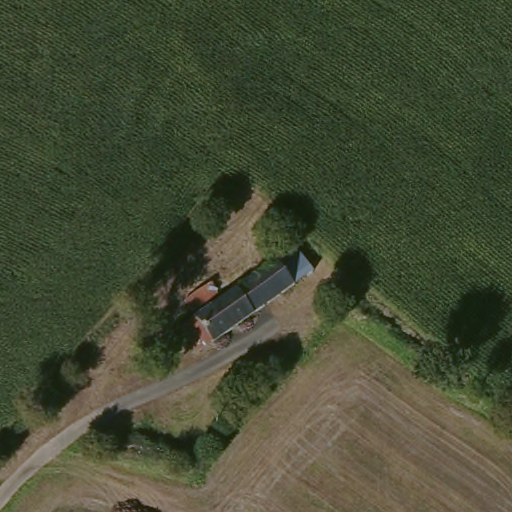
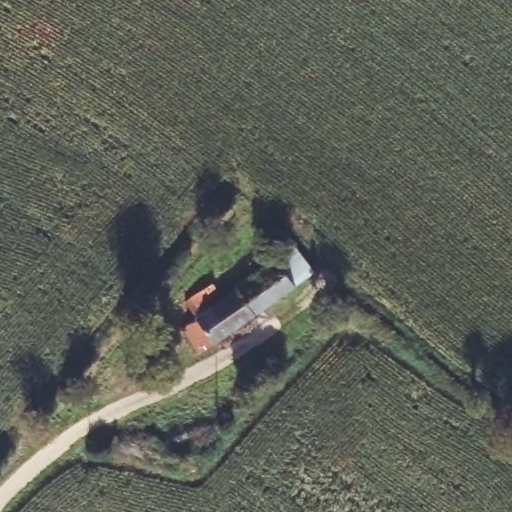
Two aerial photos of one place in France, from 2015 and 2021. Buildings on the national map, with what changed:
unchanged [(318,273),(198,354),(179,326),(190,317),(181,302),(226,270),(235,286),(274,262),(296,244),(318,273)]

